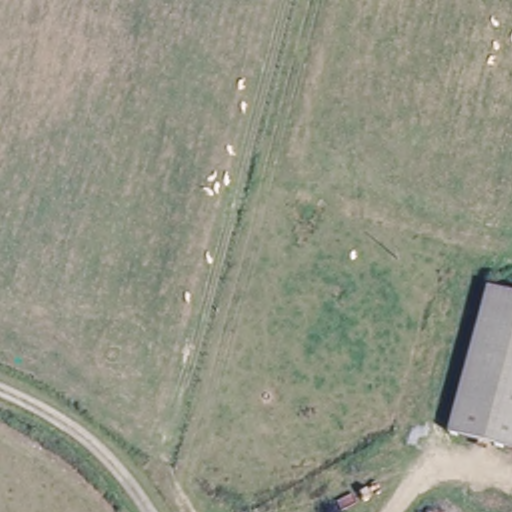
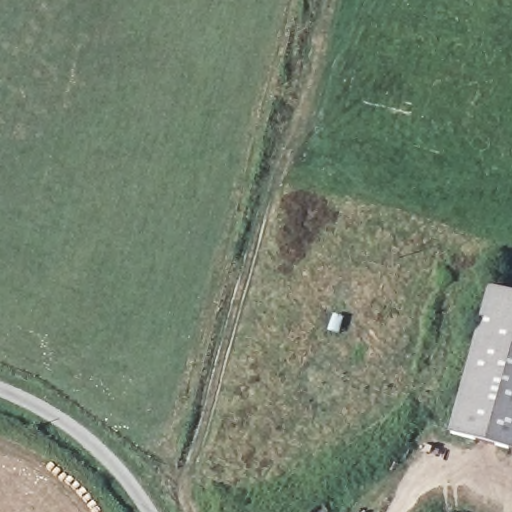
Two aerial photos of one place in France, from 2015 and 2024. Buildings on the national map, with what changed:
unchanged [(493,277),(512,283),(512,440),(450,422),(493,277)]

